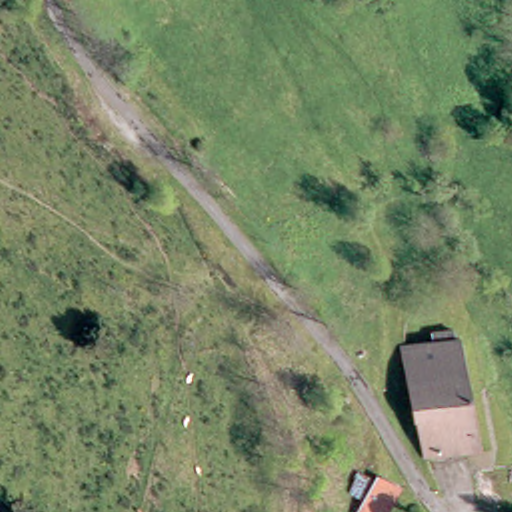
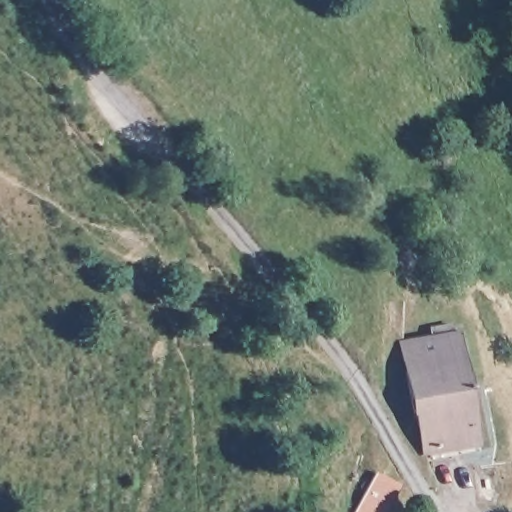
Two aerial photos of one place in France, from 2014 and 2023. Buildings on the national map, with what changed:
unchanged [(455,330),(479,437),(422,451),(399,343),(430,336),(427,326),(447,320),(449,331),(455,330)]
unchanged [(339,512),(362,474),(375,483),(358,512),(339,512)]

